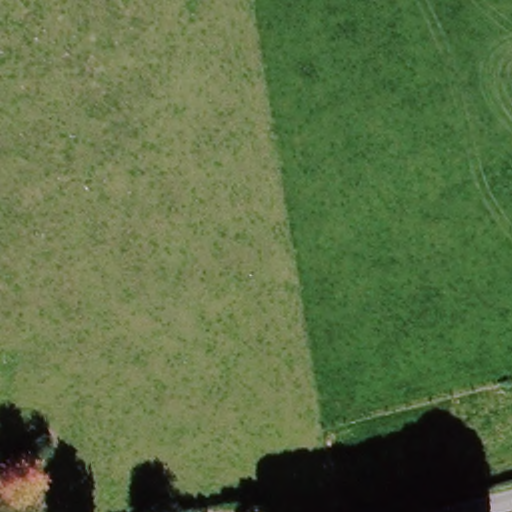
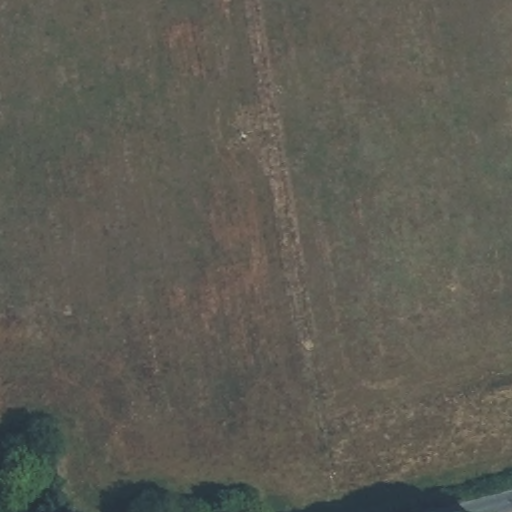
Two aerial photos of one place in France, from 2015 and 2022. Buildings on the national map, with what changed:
[]

